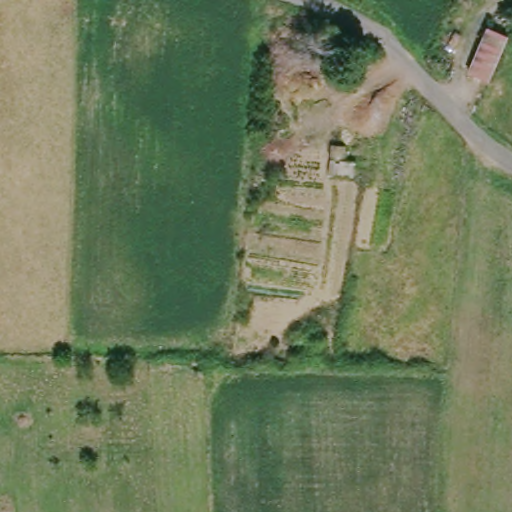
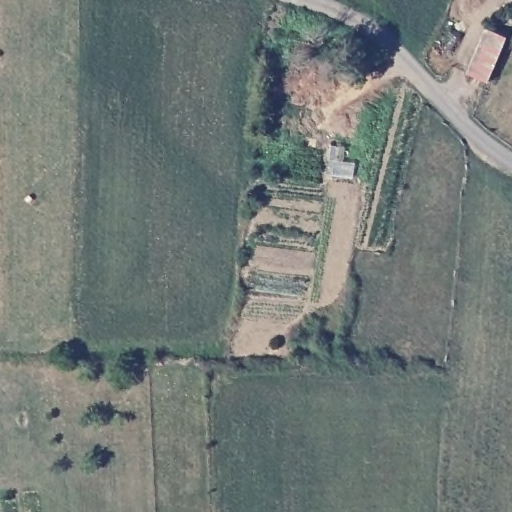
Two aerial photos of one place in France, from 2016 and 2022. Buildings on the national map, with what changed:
unchanged [(486,84),(468,78),(479,30),(499,34),(486,84)]

